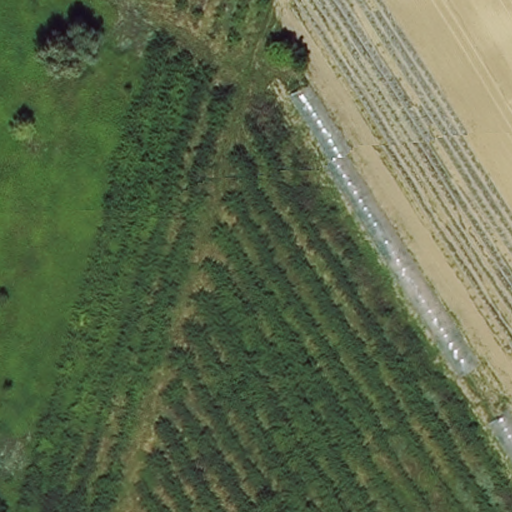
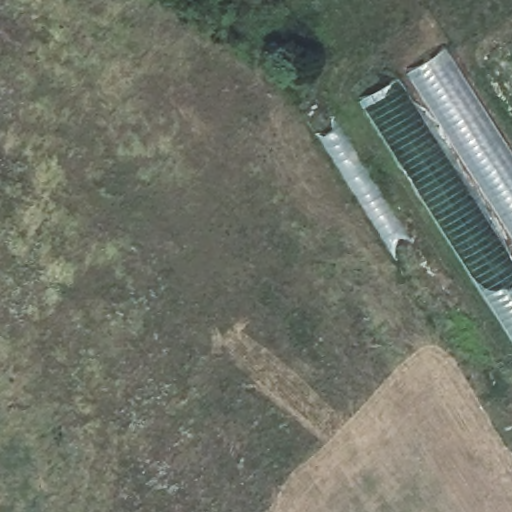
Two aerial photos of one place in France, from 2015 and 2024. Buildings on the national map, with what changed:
new [(445,50),(512,157),(512,345),(357,98),(445,50)]
new [(459,362),(299,106),(318,94),(478,350),(459,362)]

